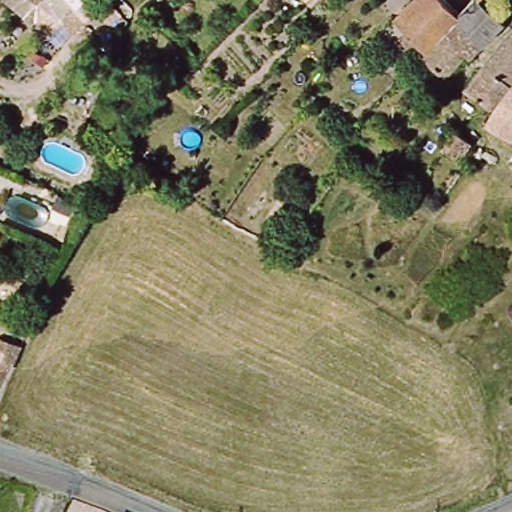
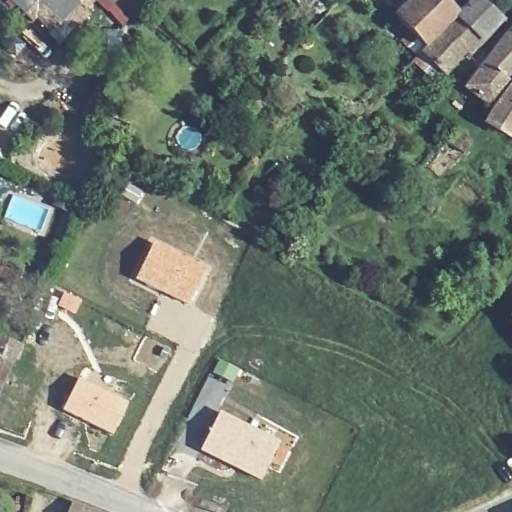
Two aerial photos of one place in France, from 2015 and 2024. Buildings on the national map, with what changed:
unchanged [(13,0),(33,0),(25,9),(13,0)]
unchanged [(43,0),(77,0),(62,17),(43,0)]
unchanged [(90,0),(83,6),(77,0),(90,0)]
unchanged [(420,43),(396,18),(414,0),(447,0),(461,14),(418,56),(412,51),(420,43)]
unchanged [(411,63),(418,56),(461,14),(473,0),(511,0),(512,1),(512,5),(499,19),(503,21),(468,56),(464,53),(443,76),(439,73),(430,83),(411,63)]
unchanged [(111,19),(119,30),(120,45),(118,50),(100,29),(111,19)]
unchanged [(506,28),(512,22),(512,75),(512,76),(512,81),(499,104),(496,102),(465,83),(506,28)]
unchanged [(496,102),(499,104),(512,81),(512,126),(510,130),(512,132),(512,149),(507,157),(474,136),(496,102)]
new [(154,240),(207,265),(187,305),(134,278),(154,240)]
unchanged [(22,343),(13,364),(0,392),(0,333),(22,343)]
new [(146,337),(169,349),(158,371),(134,360),(146,337)]
new [(218,359),(238,368),(232,382),(219,376),(217,380),(228,386),(218,410),(213,419),(209,417),(203,427),(186,420),(218,359)]
new [(79,376),(129,402),(112,436),(61,409),(79,376)]
new [(213,419),(218,410),(282,441),(260,481),(198,451),(213,419)]
unchanged [(72,504),(92,512),(69,512),(72,504)]

